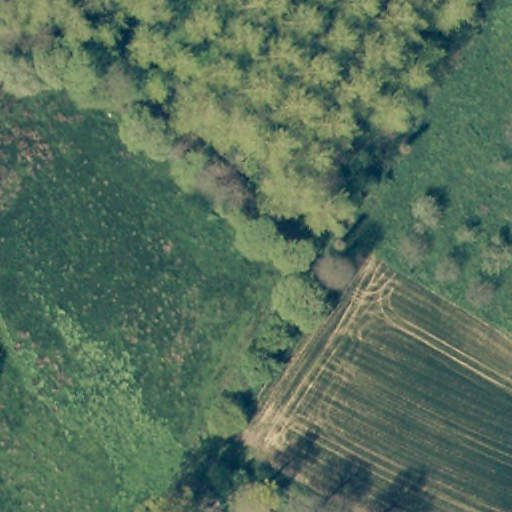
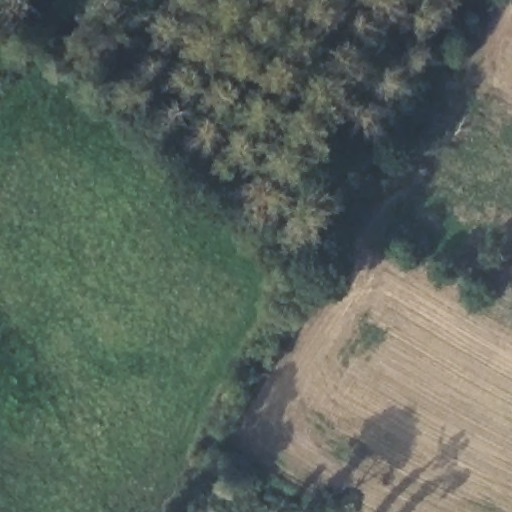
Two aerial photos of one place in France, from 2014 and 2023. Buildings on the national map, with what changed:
[]

